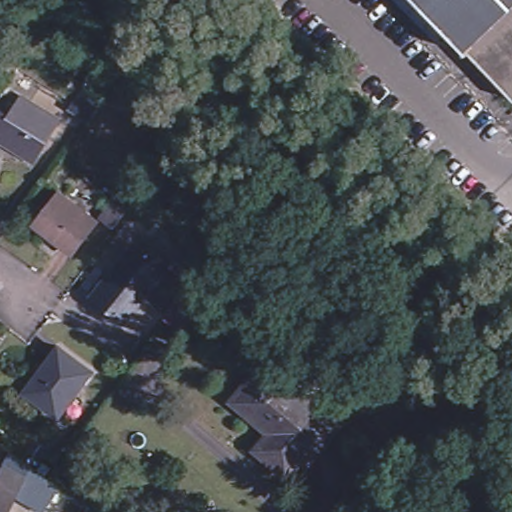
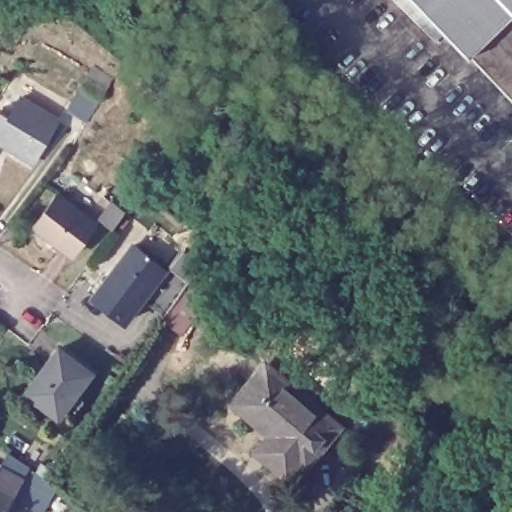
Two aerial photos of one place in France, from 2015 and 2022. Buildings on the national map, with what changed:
unchanged [(512,99),(421,0),(512,0),(512,99)]
unchanged [(89,83),(108,97),(93,118),(73,105),(89,83)]
unchanged [(37,162),(3,142),(0,147),(0,117),(3,111),(13,117),(24,98),(62,120),(37,162)]
unchanged [(33,222),(58,190),(58,191),(95,218),(70,250),(38,226),(33,222)]
unchanged [(97,299),(137,246),(170,271),(186,252),(205,266),(184,295),(164,280),(130,324),(97,299)]
unchanged [(204,277),(223,291),(189,337),(169,322),(204,277)]
unchanged [(21,396),(28,386),(58,346),(90,371),(63,408),(54,420),(21,396)]
unchanged [(289,457),(276,471),(256,453),(269,437),(228,399),(225,402),(223,400),(256,360),(328,423),(294,461),(289,457)]
unchanged [(4,512),(0,512),(0,469),(4,462),(6,458),(12,461),(9,466),(26,477),(41,486),(56,496),(46,512),(24,512),(9,503),(4,512)]

